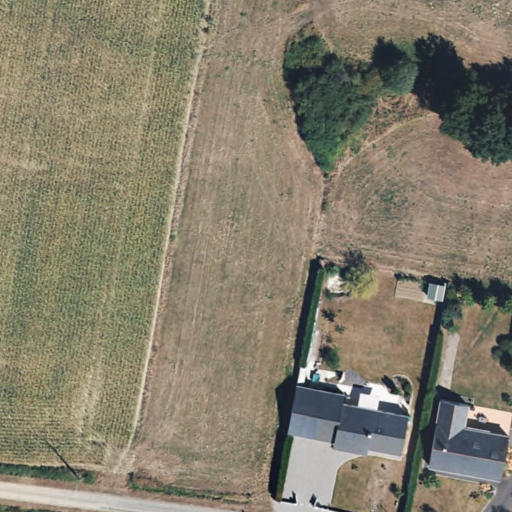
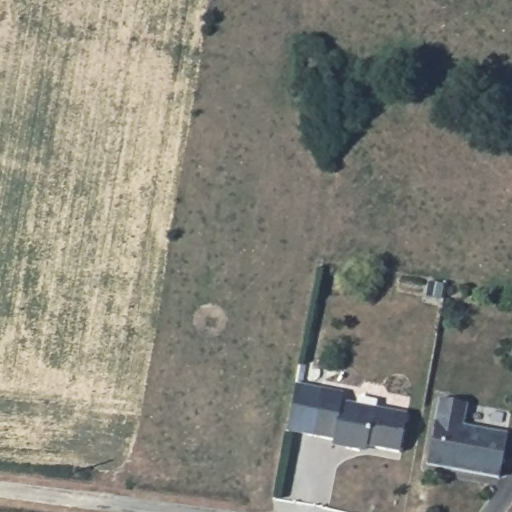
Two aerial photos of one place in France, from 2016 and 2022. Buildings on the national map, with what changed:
unchanged [(282,443),(290,404),(292,393),(342,402),(340,411),(399,422),(392,461),(363,457),(360,462),(349,460),(342,448),(333,446),(325,452),(282,443)]
unchanged [(457,424),(501,439),(489,482),(420,459),(439,396),(463,402),(457,424)]

